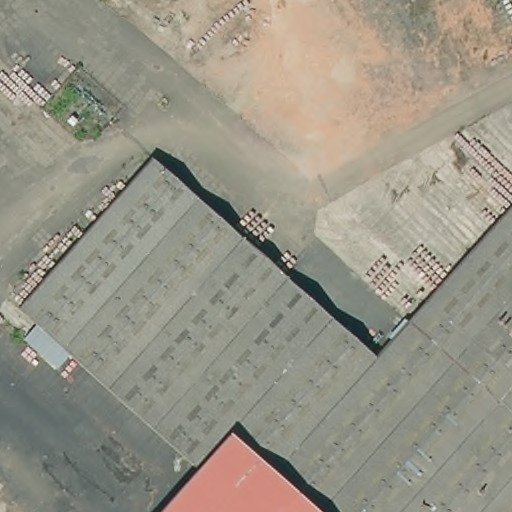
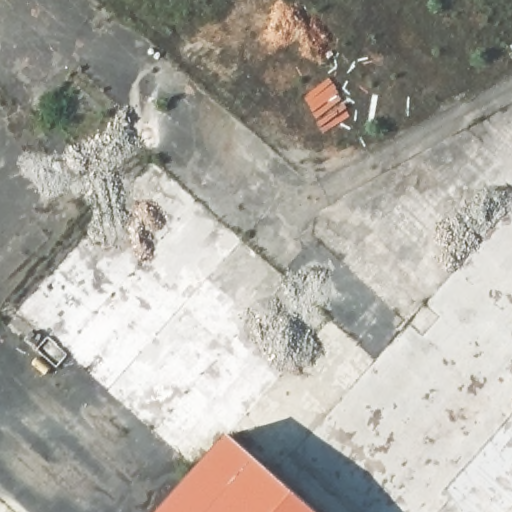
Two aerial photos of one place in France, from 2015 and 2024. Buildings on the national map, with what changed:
demolished [(156,512),(191,472),(11,313),(144,163),(368,363),(512,199),(512,512),(156,512)]
new [(150,166),(241,247),(331,325),(246,418),(227,440),(214,456),(195,477),(105,396),(46,345),(15,316),(33,296),(139,178),(150,166)]
new [(374,364),(369,368),(366,357),(374,364)]
new [(162,512),(227,440),(307,512),(162,512)]

